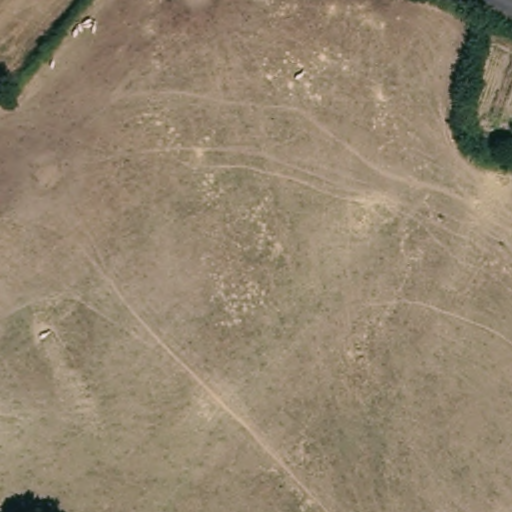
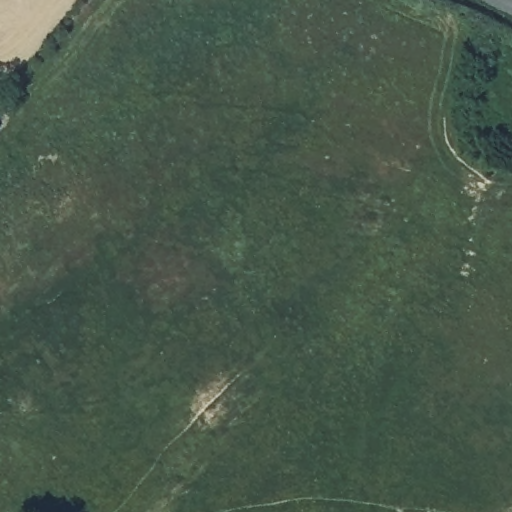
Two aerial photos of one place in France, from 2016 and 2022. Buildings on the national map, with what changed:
[]

